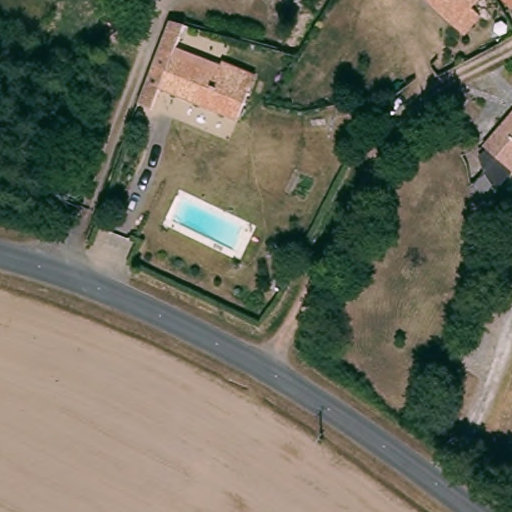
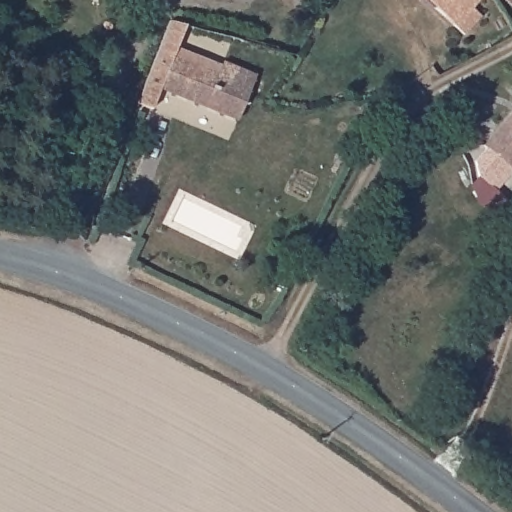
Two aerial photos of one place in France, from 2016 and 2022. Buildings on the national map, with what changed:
unchanged [(477,9),(485,19),(466,39),(429,0),(485,0),(477,9)]
unchanged [(512,7),(505,0),(512,0),(512,7)]
unchanged [(172,58),(220,74),(224,60),(259,71),(255,84),(243,123),(167,97),(159,94),(172,58)]
unchanged [(512,115),(512,172),(485,143),(512,115)]

